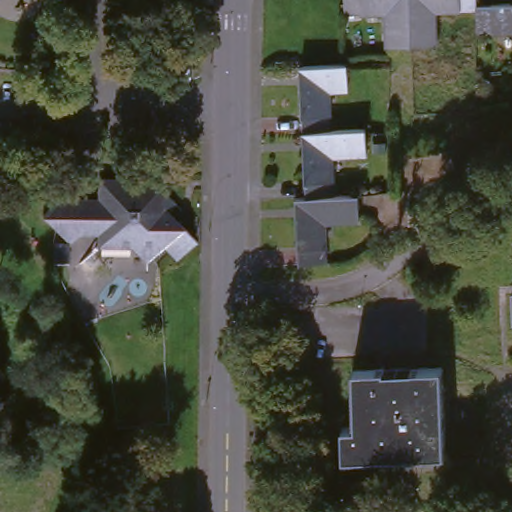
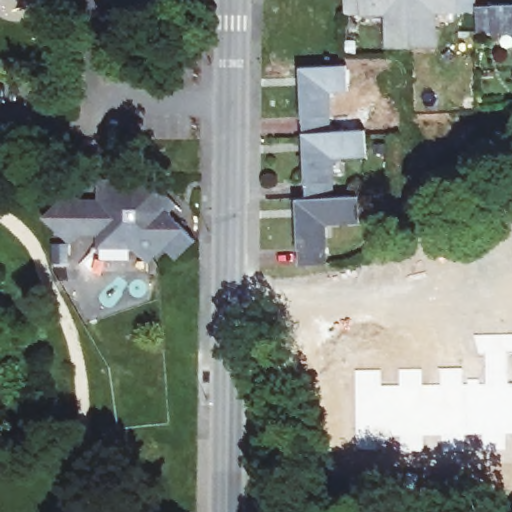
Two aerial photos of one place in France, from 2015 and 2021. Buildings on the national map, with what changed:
unchanged [(407,47),(389,48),(388,11),(366,12),(348,12),(348,0),(414,0),(415,46),(407,47)]
unchanged [(446,10),(440,10),(439,46),(415,46),(414,0),(477,0),(477,3),(477,9),(446,10)]
unchanged [(498,31),(478,31),(477,9),(477,3),(504,3),(512,2),(512,31),(498,31)]
unchanged [(304,129),(303,64),(351,63),(351,89),(333,89),(333,129),(304,129)]
unchanged [(306,196),(304,129),(333,129),(366,129),(367,156),(333,158),(334,195),(306,196)]
unchanged [(193,244),(172,262),(161,249),(144,264),(126,249),(96,248),(96,234),(81,234),(70,244),(43,215),(66,191),(86,210),(95,210),(95,183),(160,182),(161,195),(173,209),(168,214),(181,231),(193,244)]
unchanged [(334,195),(356,195),(358,220),(328,221),(324,221),(324,261),(296,262),(296,196),(306,196),(334,195)]
demolished [(444,455),(344,457),(343,424),(358,424),(357,369),(444,368),(444,455)]

